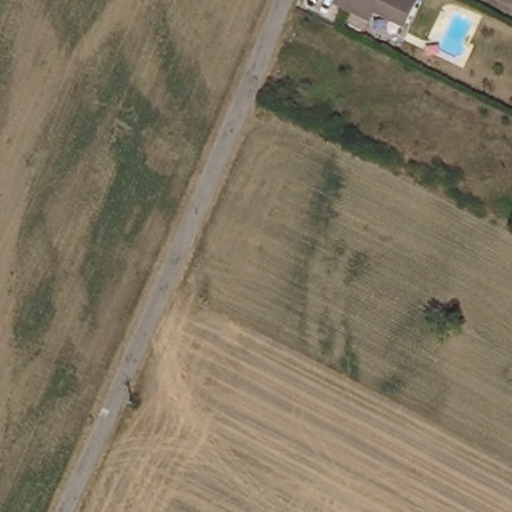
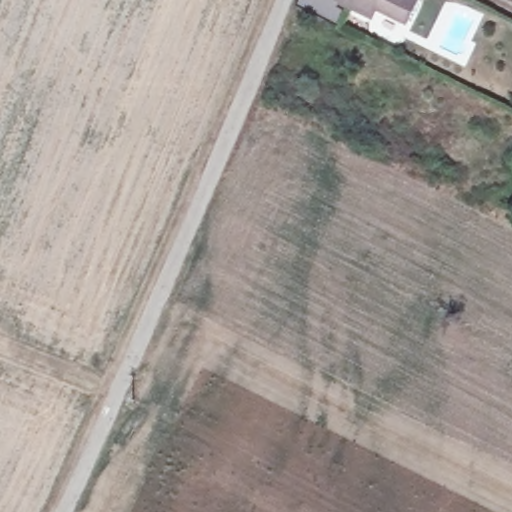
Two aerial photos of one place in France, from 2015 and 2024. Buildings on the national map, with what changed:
unchanged [(379,10),(374,20),(341,4),(343,0),(423,0),(410,26),(379,10)]

